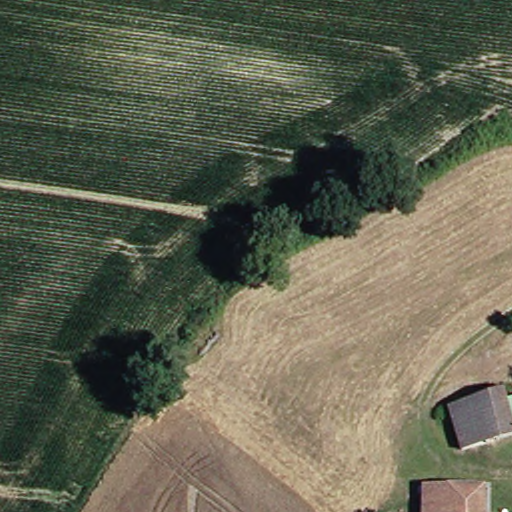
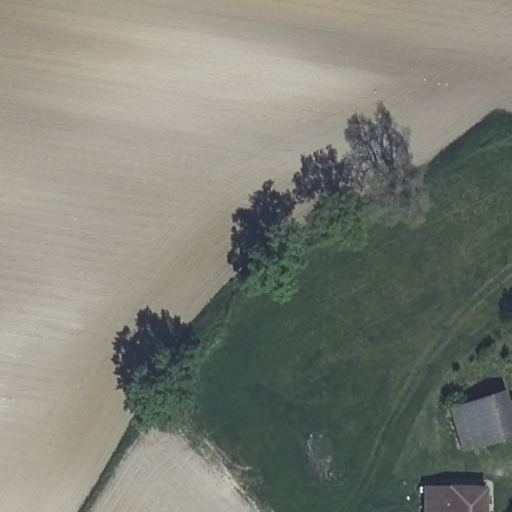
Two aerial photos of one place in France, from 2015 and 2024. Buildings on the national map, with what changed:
unchanged [(501,405),(512,401),(512,440),(461,451),(449,409),(498,396),(501,405)]
unchanged [(480,512),(416,512),(416,491),(479,487),(480,512)]

